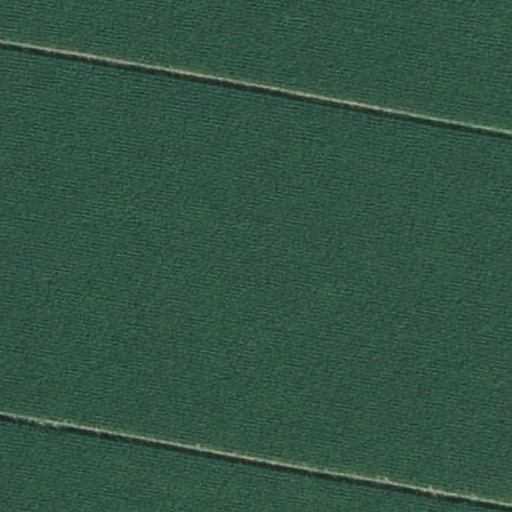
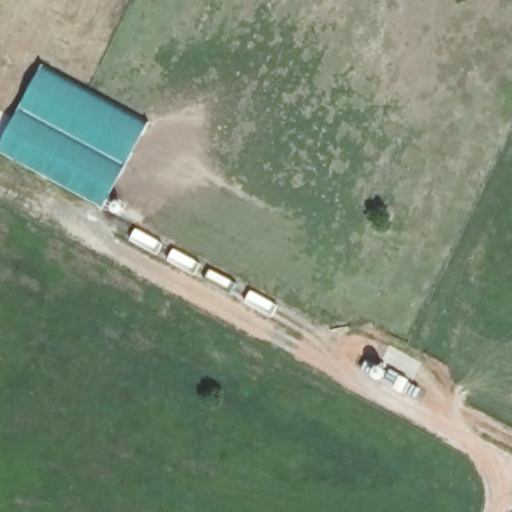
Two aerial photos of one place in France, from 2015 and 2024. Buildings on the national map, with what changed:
new [(0,143),(44,65),(147,126),(106,207),(0,153),(0,143)]

